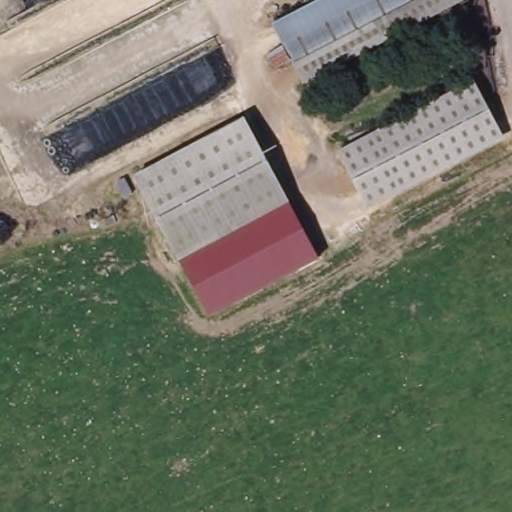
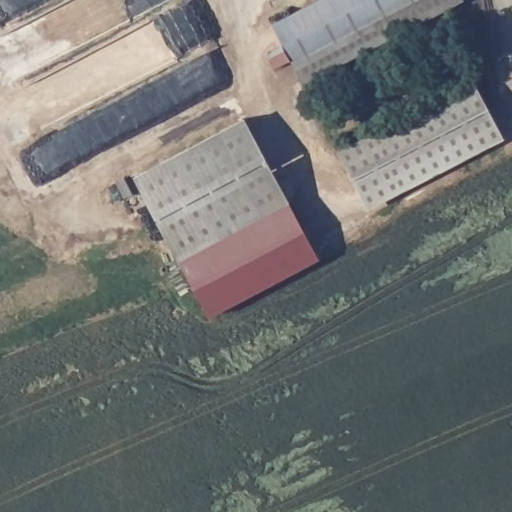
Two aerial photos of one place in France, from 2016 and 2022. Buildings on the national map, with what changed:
unchanged [(302,80),(272,24),(318,0),(458,0),(302,80)]
unchanged [(337,150),(474,79),(504,136),(369,208),(337,150)]
unchanged [(253,139),(286,202),(179,258),(137,179),(156,169),(245,123),(253,139)]
unchanged [(286,202),(316,260),(210,316),(179,258),(286,202)]

